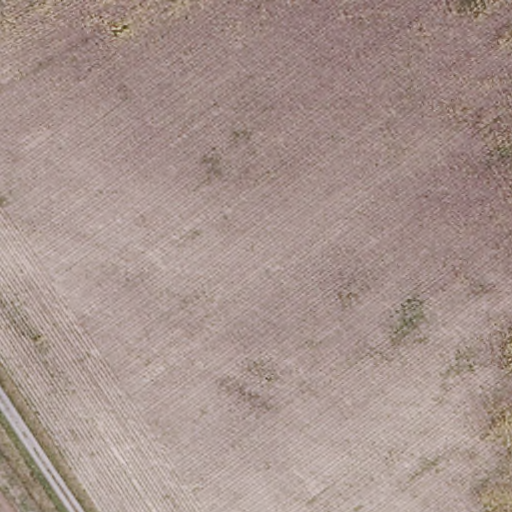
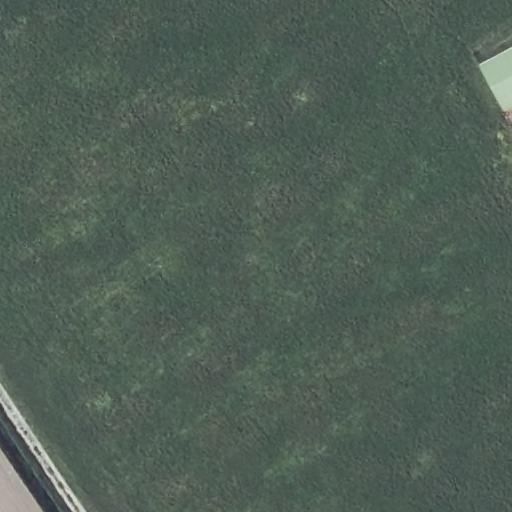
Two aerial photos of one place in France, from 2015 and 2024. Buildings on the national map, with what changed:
new [(512,51),(512,104),(500,110),(479,67),(512,51)]

